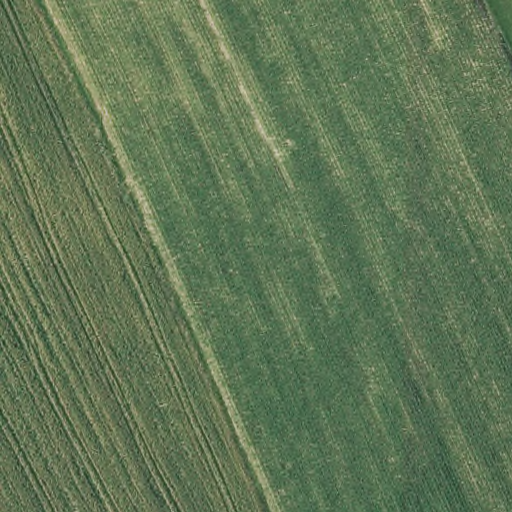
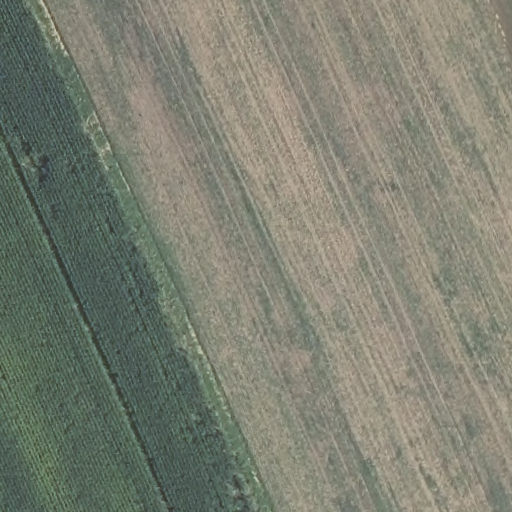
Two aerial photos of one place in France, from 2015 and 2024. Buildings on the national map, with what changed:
[]

